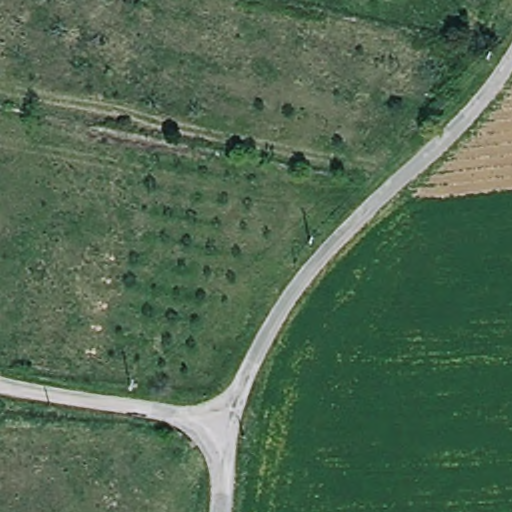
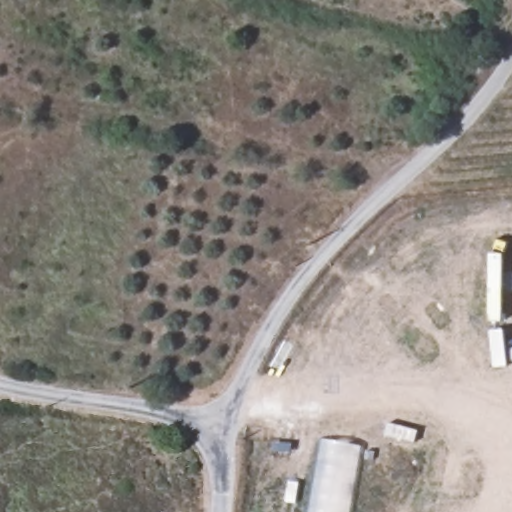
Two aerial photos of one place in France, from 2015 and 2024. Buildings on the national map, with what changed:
new [(350,512),(309,512),(321,439),(362,446),(350,512)]

